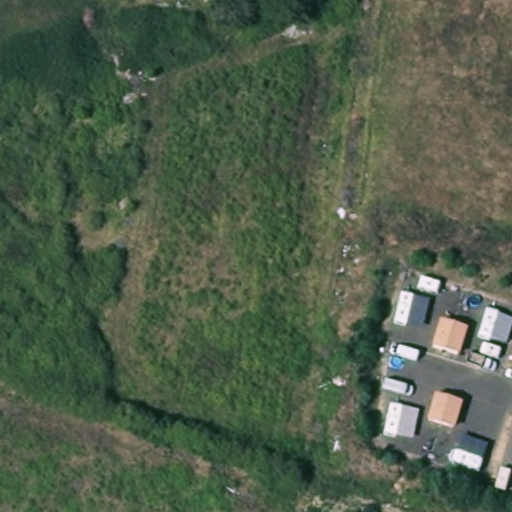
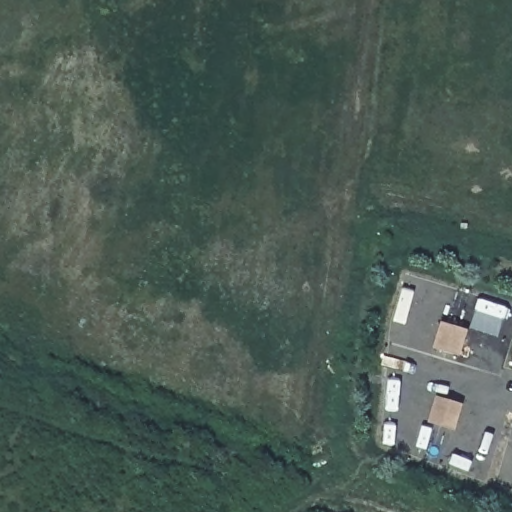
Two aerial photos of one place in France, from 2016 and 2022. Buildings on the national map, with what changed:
unchanged [(466,328),(458,353),(429,345),(437,321),(466,328)]
unchanged [(462,402),(452,430),(424,421),(430,393),(462,402)]

